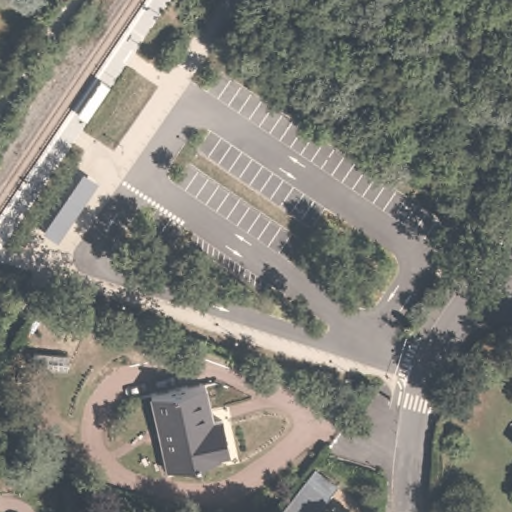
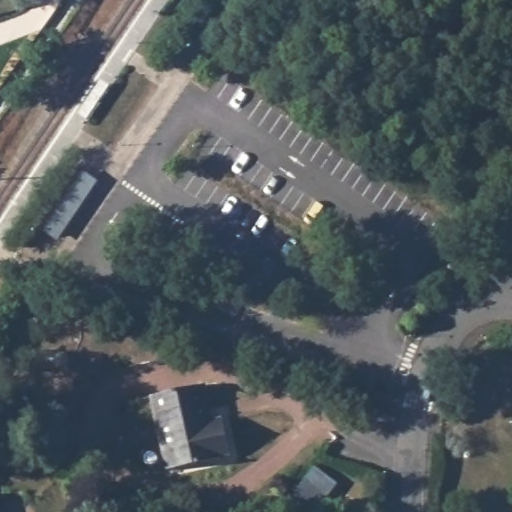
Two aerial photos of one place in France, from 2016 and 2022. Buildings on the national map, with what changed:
unchanged [(59,239),(45,229),(85,171),(100,181),(59,239)]
unchanged [(230,455),(220,457),(220,461),(166,471),(150,397),(204,386),(209,410),(211,422),(221,420),(230,455)]
unchanged [(337,480),(313,512),(301,512),(298,510),(297,512),(283,512),(279,509),(315,463),(337,480)]

